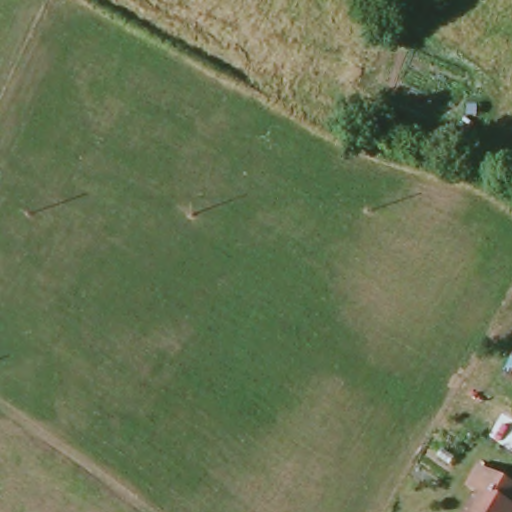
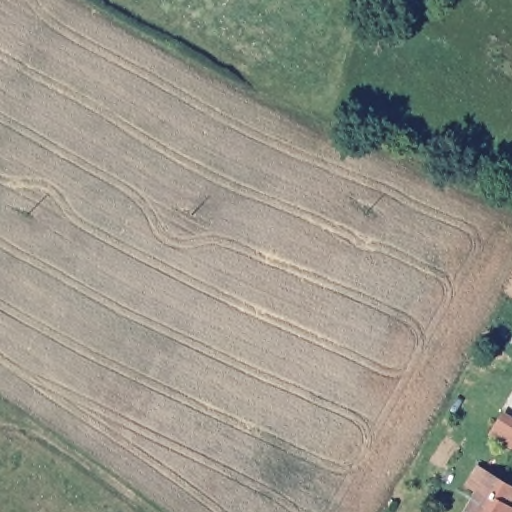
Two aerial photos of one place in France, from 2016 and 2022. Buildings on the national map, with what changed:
unchanged [(481,475),(512,490),(512,506),(511,509),(512,510),(512,512),(463,512),(481,475)]

